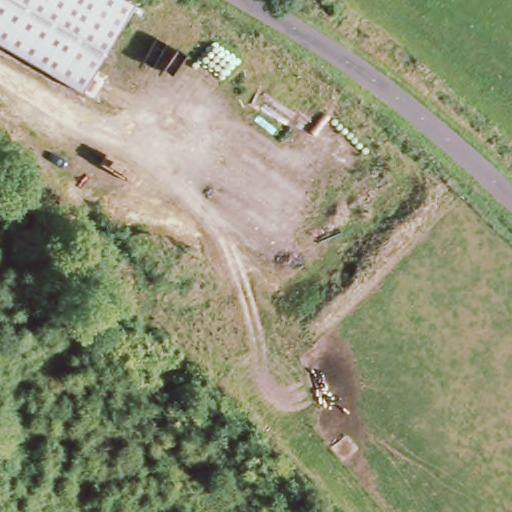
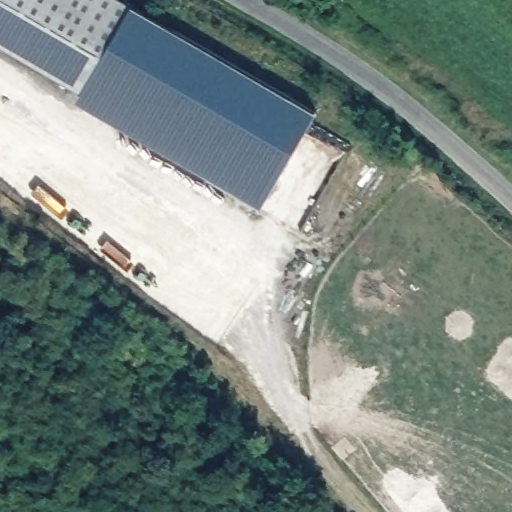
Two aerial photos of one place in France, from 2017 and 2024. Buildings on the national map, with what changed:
unchanged [(81,94),(0,46),(0,0),(128,0),(133,3),(81,94)]
new [(316,111),(261,208),(76,101),(81,94),(132,6),(316,111)]

